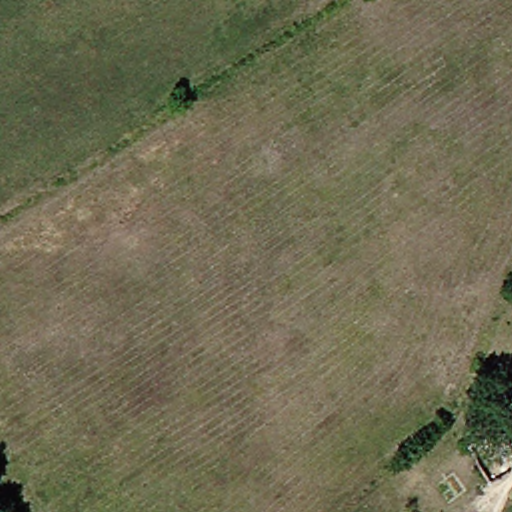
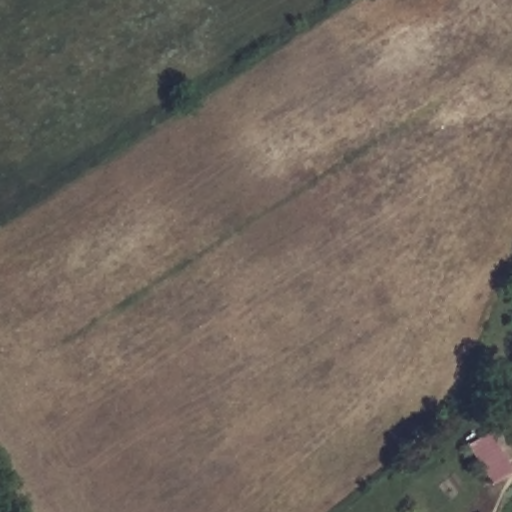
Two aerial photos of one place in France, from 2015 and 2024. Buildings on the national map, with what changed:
unchanged [(512,352),(512,359),(509,354),(512,352)]
new [(489,484),(468,444),(489,437),(510,473),(489,484)]

